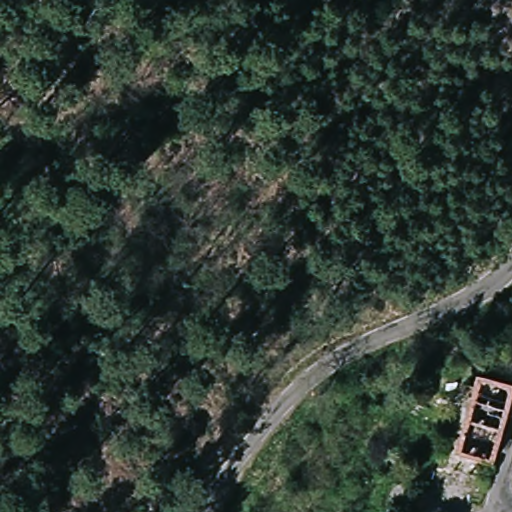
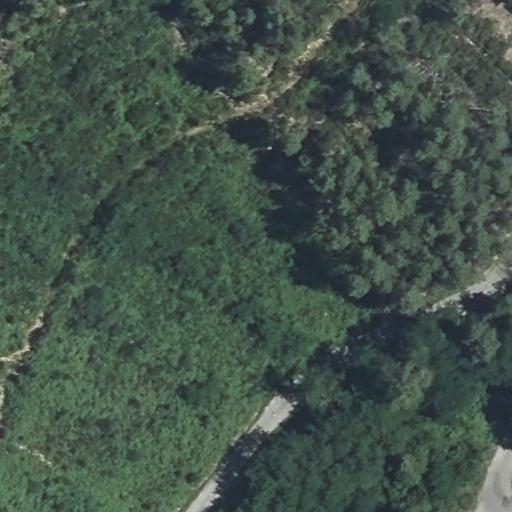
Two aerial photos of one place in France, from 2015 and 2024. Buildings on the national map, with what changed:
demolished [(512,390),(512,408),(498,464),(463,455),(475,410),(462,407),(468,383),(481,387),(482,383),(512,390)]

